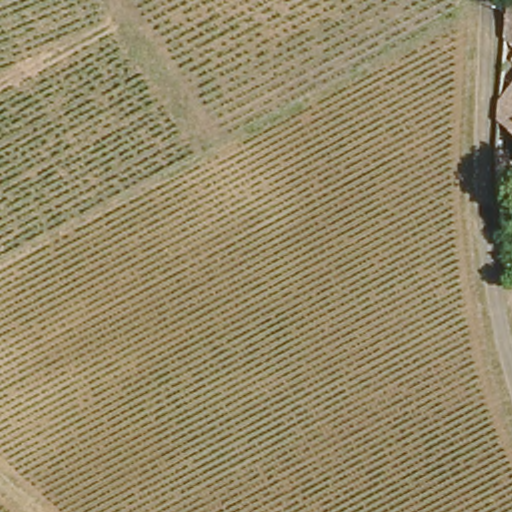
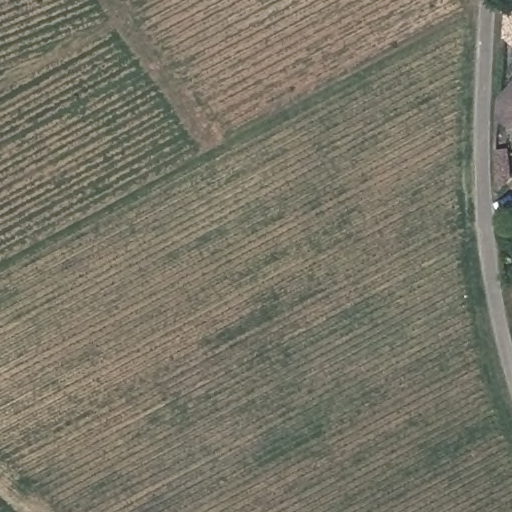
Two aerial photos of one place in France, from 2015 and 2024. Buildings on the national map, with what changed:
unchanged [(511,10),(512,9),(512,33),(510,31),(511,10)]
unchanged [(500,104),(512,88),(512,121),(500,111),(500,104)]
unchanged [(508,151),(512,151),(512,174),(509,177),(498,180),(499,141),(507,142),(508,151)]

